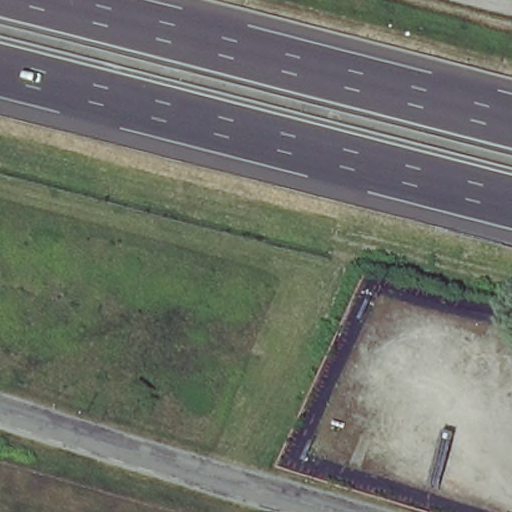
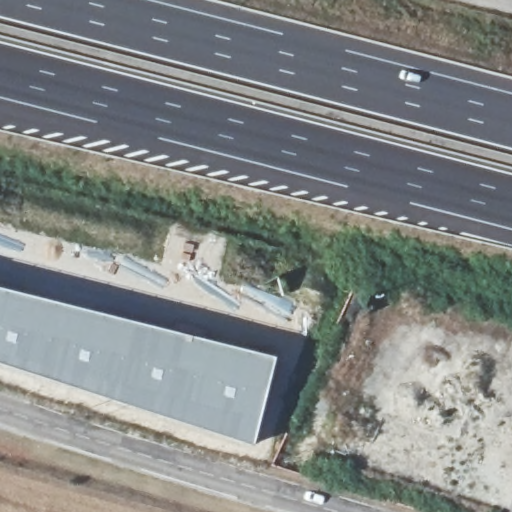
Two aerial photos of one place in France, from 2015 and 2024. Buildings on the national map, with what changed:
new [(252,444),(0,364),(0,286),(274,355),(252,444)]

